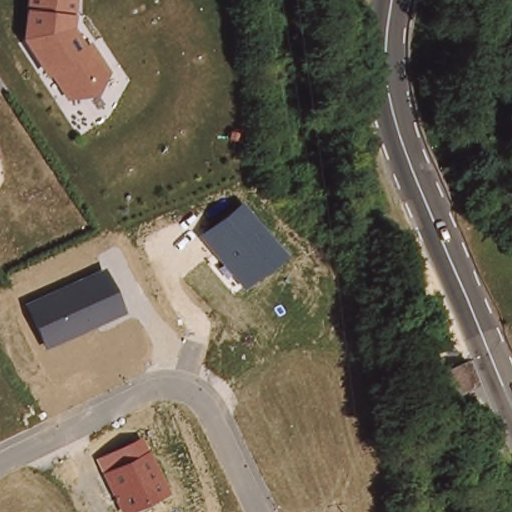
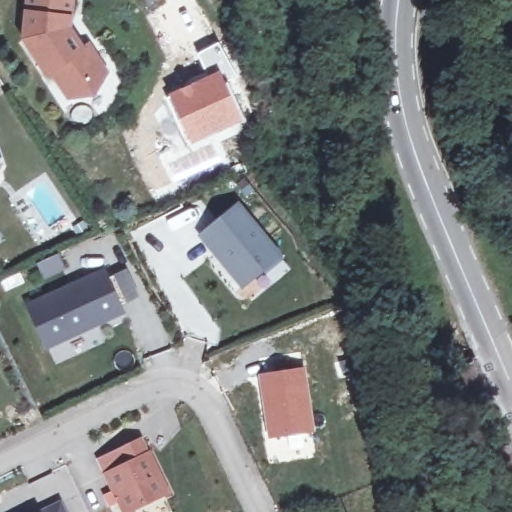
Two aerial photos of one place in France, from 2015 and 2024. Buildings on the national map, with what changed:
unchanged [(93,98),(67,101),(51,76),(46,79),(21,40),(24,0),(77,0),(72,29),(86,46),(91,44),(110,74),(93,98)]
new [(221,69),(245,123),(190,146),(167,95),(221,69)]
unchanged [(241,290),(197,239),(237,201),(281,257),(241,290)]
unchanged [(45,349),(25,303),(104,267),(126,313),(45,349)]
unchanged [(460,401),(450,377),(473,366),(483,390),(460,401)]
new [(258,375),(305,367),(315,432),(268,440),(258,375)]
unchanged [(118,512),(92,460),(141,435),(168,494),(132,512),(118,512)]
unchanged [(474,457),(510,448),(512,453),(512,474),(506,475),(496,477),(482,481),(474,457)]
new [(73,512),(61,512),(71,507),(73,512)]

